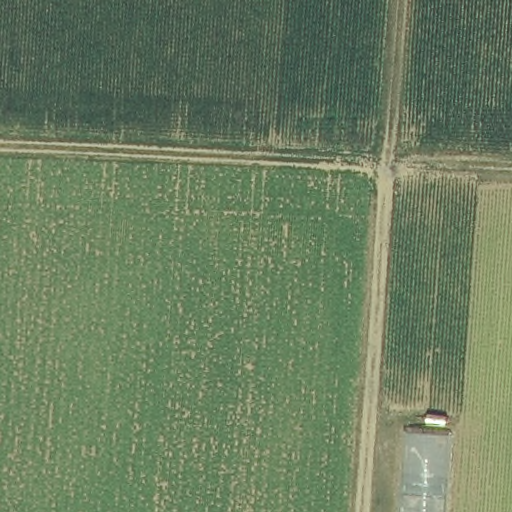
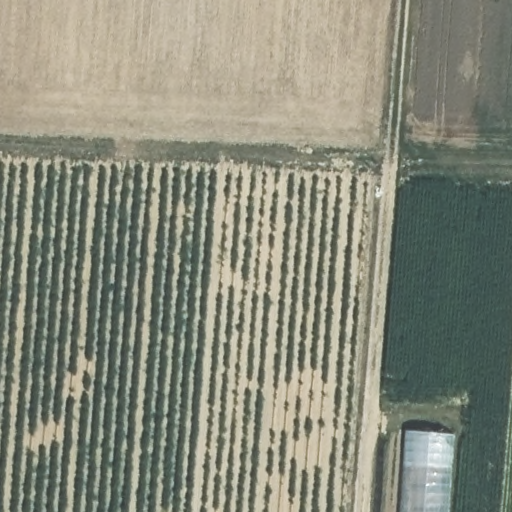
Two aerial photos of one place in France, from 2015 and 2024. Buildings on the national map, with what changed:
unchanged [(447,512),(398,512),(405,428),(454,433),(447,512)]

